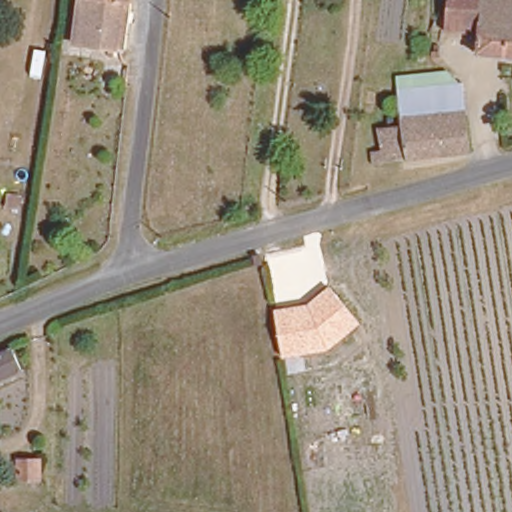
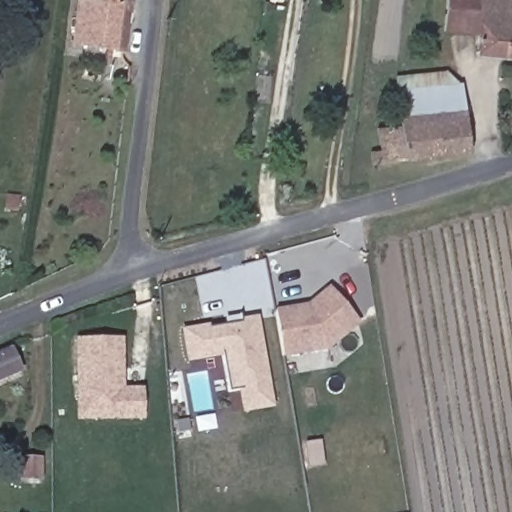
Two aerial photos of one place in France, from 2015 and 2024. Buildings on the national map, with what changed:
unchanged [(109,45),(73,40),(78,0),(125,0),(119,46),(109,45)]
unchanged [(477,54),(477,32),(449,31),(450,0),(512,0),(512,56),(477,54)]
unchanged [(374,165),(372,151),(382,147),(379,127),(400,123),(395,90),(411,87),(457,78),(472,148),(374,165)]
unchanged [(329,351),(283,357),(276,310),(308,304),(328,287),(361,324),(329,351)]
new [(274,408),(245,413),(247,406),(244,386),(231,389),(226,357),(186,364),(181,332),(258,319),(274,408)]
new [(77,422),(76,340),(124,339),(124,388),(144,389),(145,421),(77,422)]
unchanged [(18,376),(0,383),(0,351),(6,349),(18,376)]
unchanged [(25,479),(26,455),(51,455),(51,479),(25,479)]

